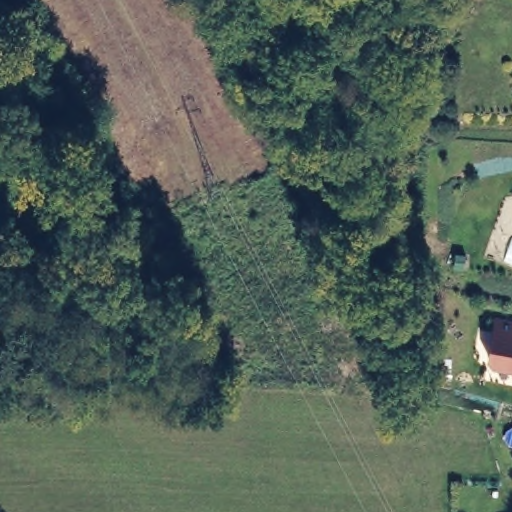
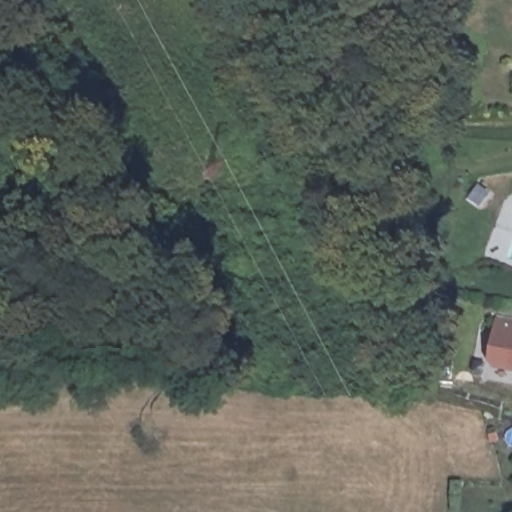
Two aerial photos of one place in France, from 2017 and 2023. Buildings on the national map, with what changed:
unchanged [(512,368),(494,365),(488,357),(495,320),(512,322),(512,368)]

